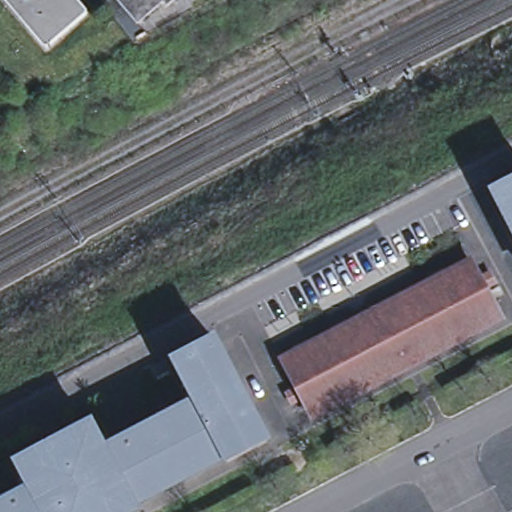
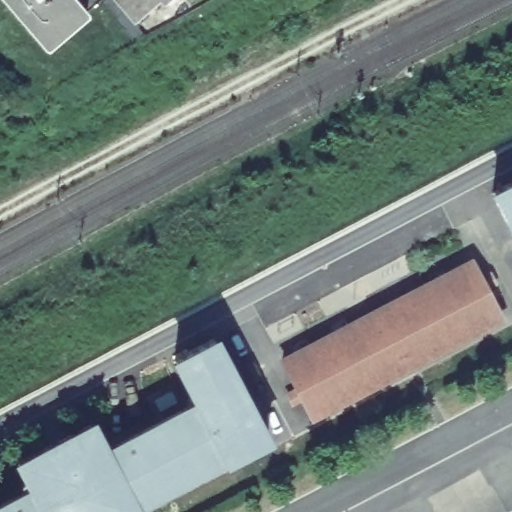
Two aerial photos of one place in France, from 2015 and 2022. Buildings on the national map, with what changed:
unchanged [(47,49),(5,0),(74,0),(87,15),(47,49)]
unchanged [(167,6),(163,2),(137,23),(116,0),(175,0),(167,6)]
unchanged [(512,183),(512,231),(492,193),(512,183)]
unchanged [(413,279),(422,274),(427,284),(472,261),(481,279),(490,274),(495,285),(486,290),(502,320),(427,359),(430,365),(419,371),(415,364),(313,419),(302,399),(292,404),(287,395),(297,390),(282,361),(419,289),(413,279)]
unchanged [(23,484),(27,482),(17,462),(92,423),(102,442),(107,440),(110,442),(112,446),(190,406),(187,401),(190,396),(193,394),(175,358),(213,338),(237,382),(238,381),(247,399),(245,400),(268,442),(229,462),(225,457),(135,504),(137,510),(135,512),(0,512),(0,505),(24,493),(21,487),(23,484)]

